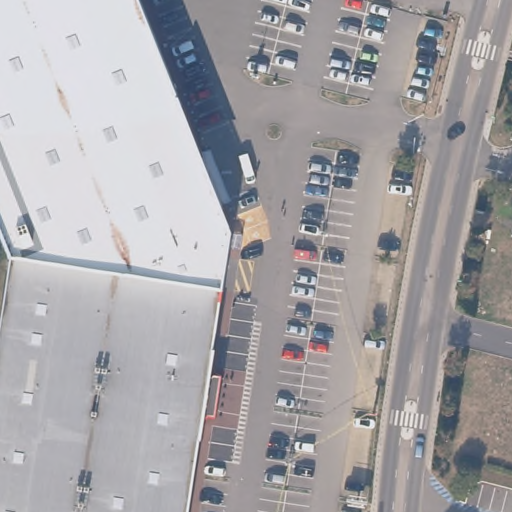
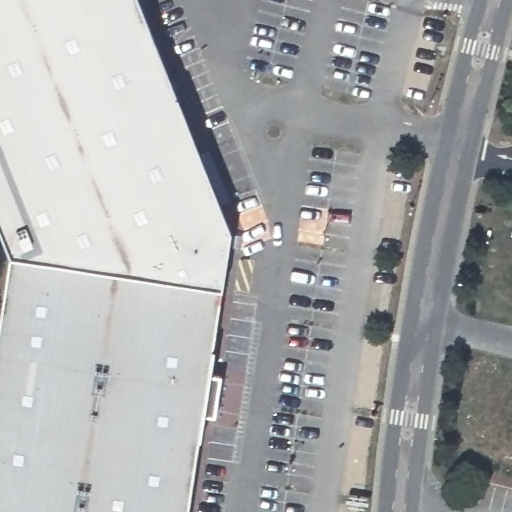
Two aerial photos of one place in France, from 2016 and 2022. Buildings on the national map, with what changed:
unchanged [(220,289),(8,257),(0,236),(0,0),(138,0),(229,232),(220,289)]
unchanged [(212,349),(209,374),(219,376),(212,417),(202,415),(198,440),(197,439),(186,512),(0,512),(0,308),(8,257),(220,289),(211,349),(212,349)]

